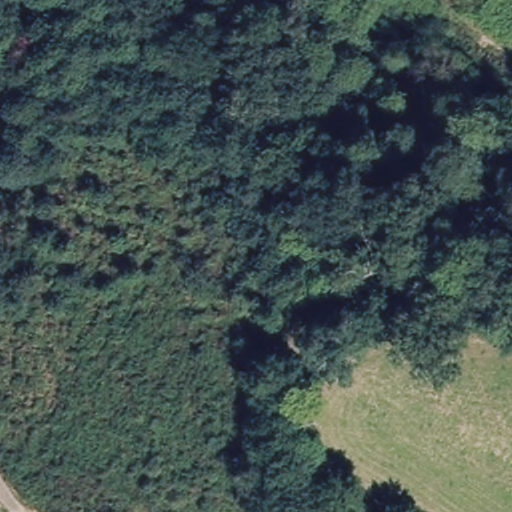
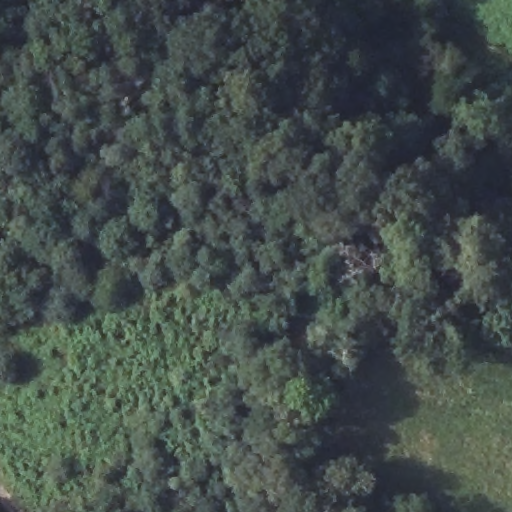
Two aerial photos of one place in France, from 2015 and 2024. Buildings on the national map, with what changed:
[]

